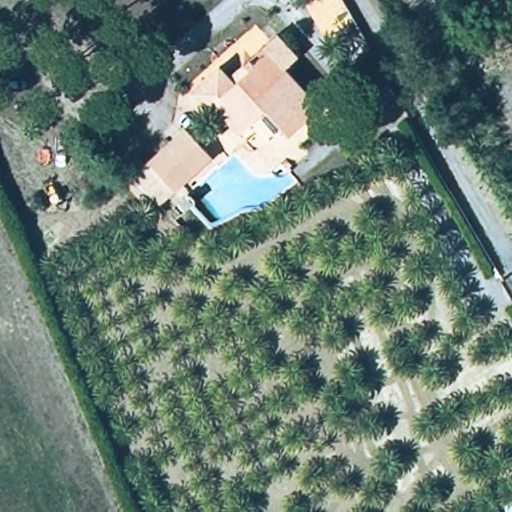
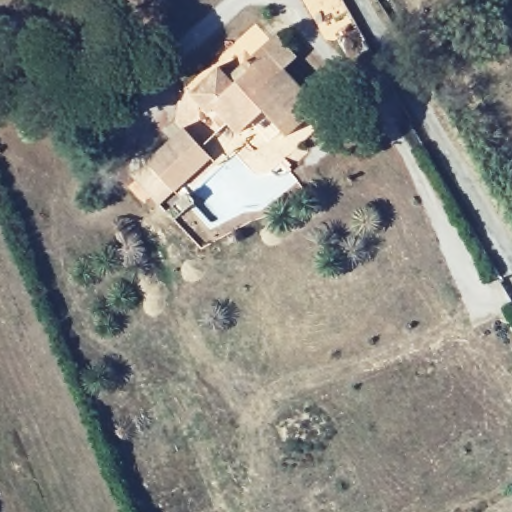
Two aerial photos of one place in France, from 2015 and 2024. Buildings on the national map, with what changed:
unchanged [(221,58),(242,78),(249,71),(243,65),(262,45),(320,98),(292,131),(264,107),(241,131),(194,86),(221,58)]
unchanged [(178,128),(211,157),(168,205),(135,175),(178,128)]

